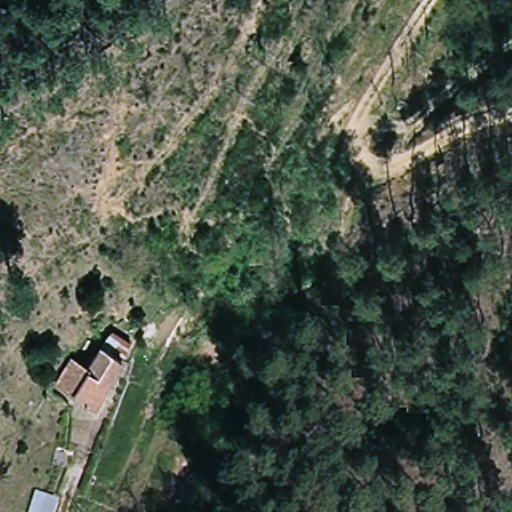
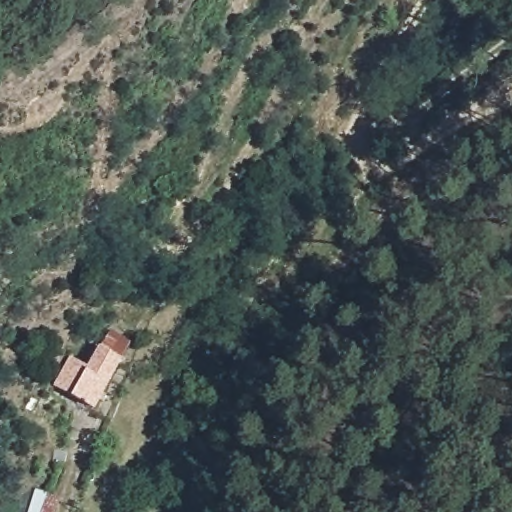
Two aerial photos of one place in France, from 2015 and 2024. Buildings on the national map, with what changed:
unchanged [(129,350),(91,410),(55,386),(71,360),(88,369),(107,338),(129,350)]
unchanged [(54,512),(32,512),(43,492),(60,500),(54,512)]

